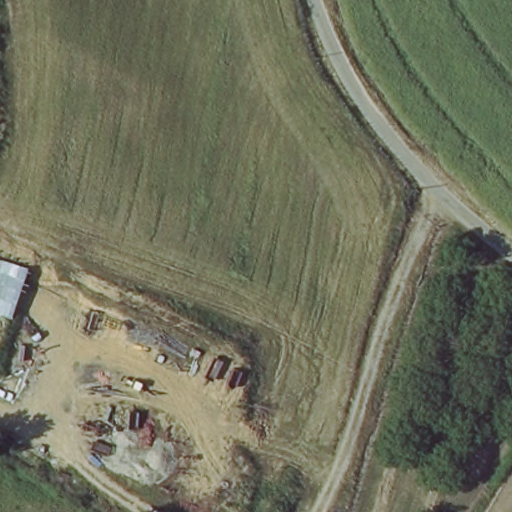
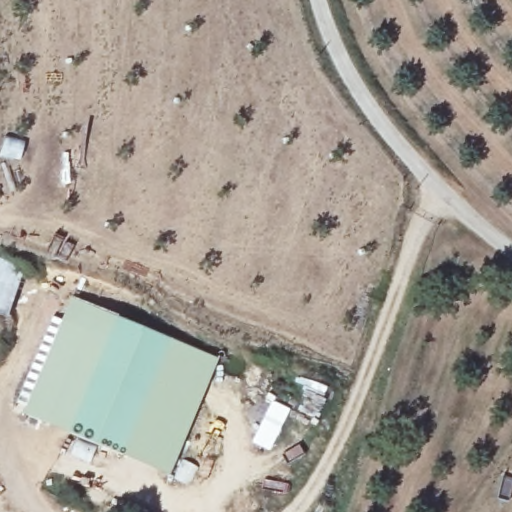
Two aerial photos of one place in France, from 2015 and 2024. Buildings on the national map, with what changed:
unchanged [(11,318),(0,314),(0,260),(27,268),(11,318)]
new [(25,414),(73,299),(219,359),(170,475),(25,414)]

